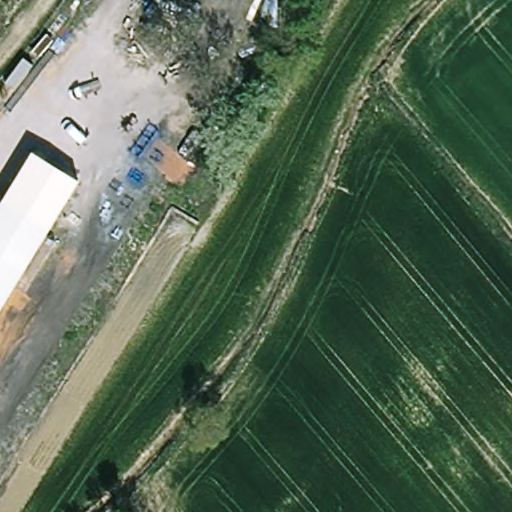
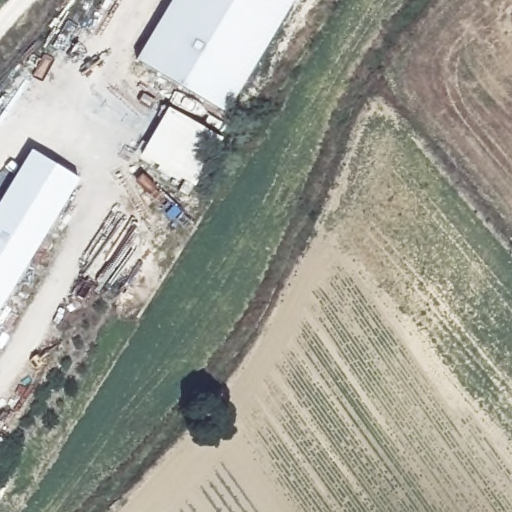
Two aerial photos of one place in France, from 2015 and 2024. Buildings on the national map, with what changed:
new [(226,115),(136,60),(172,0),(295,0),(226,115)]
new [(222,139),(195,188),(140,156),(168,108),(222,139)]
unchanged [(7,193),(32,152),(80,181),(55,225),(7,193)]
unchanged [(7,193),(55,225),(4,302),(0,308),(0,204),(7,193)]

